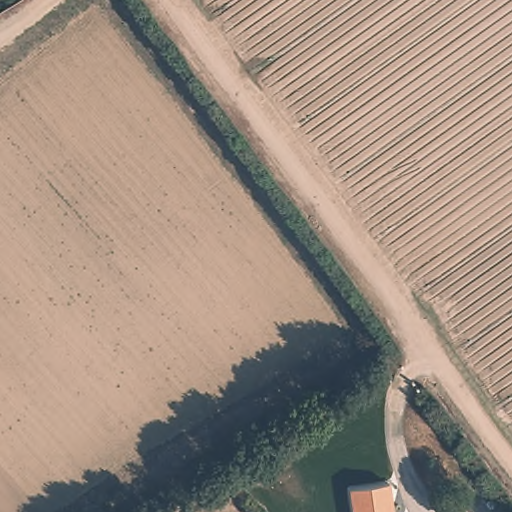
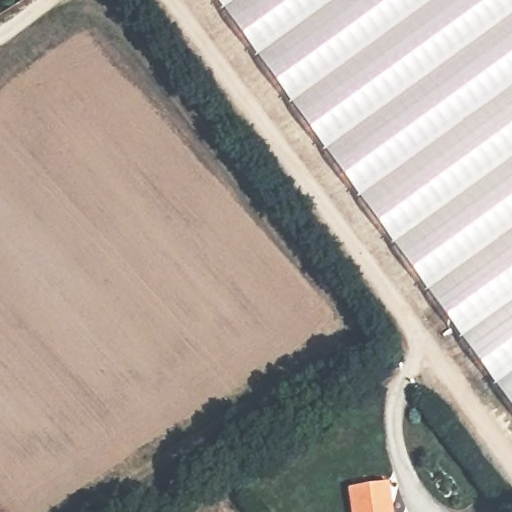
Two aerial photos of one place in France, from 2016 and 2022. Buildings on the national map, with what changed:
new [(512,409),(217,0),(512,0),(512,409)]
unchanged [(393,485),(396,512),(357,512),(354,491),(393,485)]

